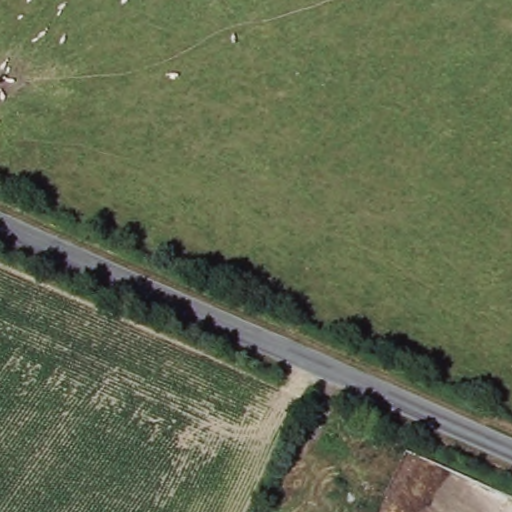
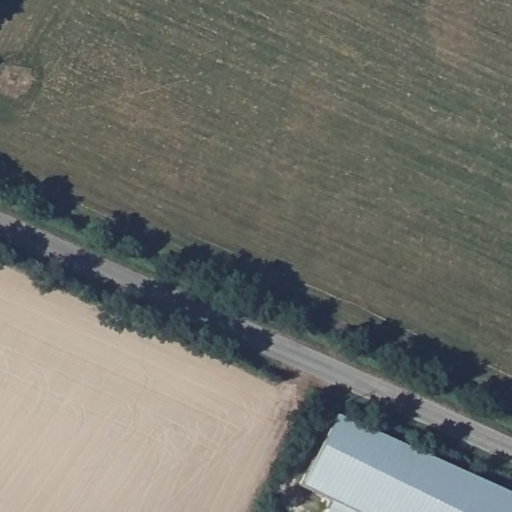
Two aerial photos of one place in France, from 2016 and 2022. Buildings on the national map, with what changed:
new [(300,486),(335,411),(512,492),(512,512),(325,512),(331,500),(300,486)]

